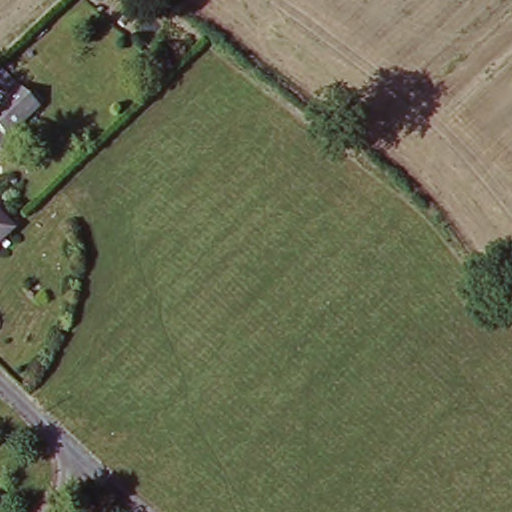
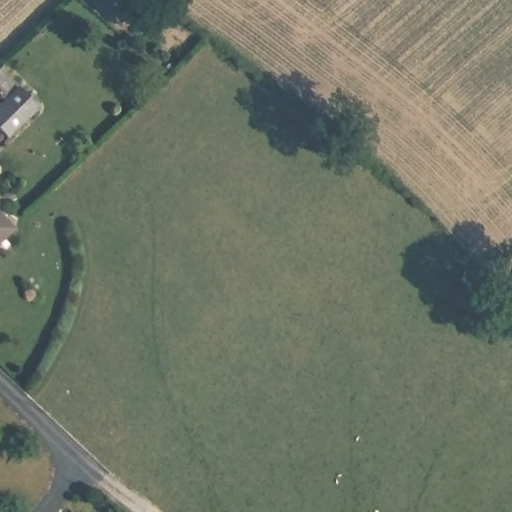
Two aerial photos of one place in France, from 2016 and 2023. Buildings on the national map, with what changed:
unchanged [(43,108),(12,138),(0,126),(0,108),(7,101),(0,94),(0,71),(3,68),(43,108)]
unchanged [(18,228),(0,246),(0,210),(18,228)]

